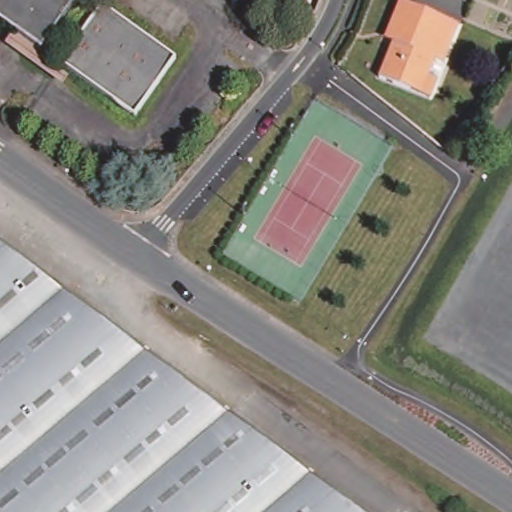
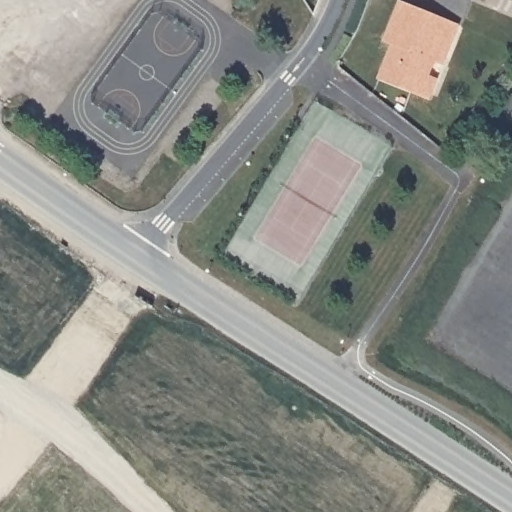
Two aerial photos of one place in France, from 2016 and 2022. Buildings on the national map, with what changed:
demolished [(79,80),(59,67),(75,45),(58,33),(41,54),(0,25),(0,0),(81,0),(64,25),(81,36),(101,8),(175,61),(134,119),(79,80)]
unchanged [(410,91),(379,78),(393,44),(384,40),(387,33),(400,1),(459,25),(443,64),(434,61),(428,77),(437,81),(429,99),(410,91)]
demolished [(0,512),(0,245),(360,512),(0,512)]

